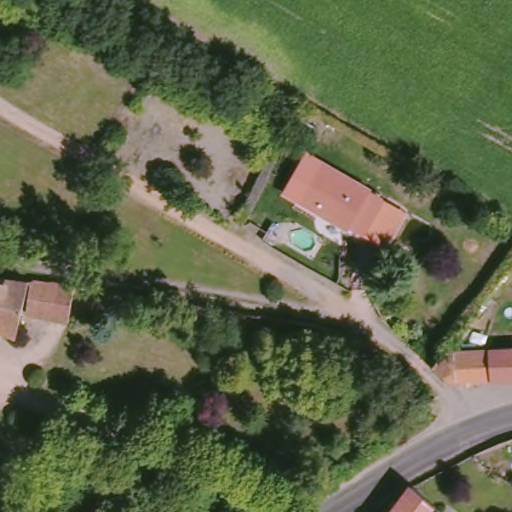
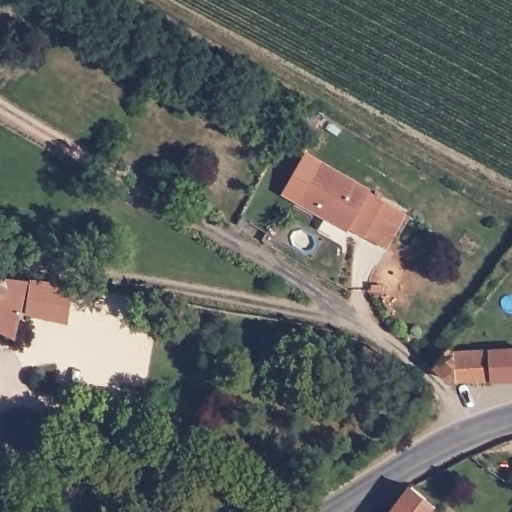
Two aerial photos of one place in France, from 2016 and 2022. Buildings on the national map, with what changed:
unchanged [(368,191),(318,162),(322,157),(374,185),(384,197),(407,211),(389,246),(349,225),(368,191)]
unchanged [(318,162),(368,191),(347,228),(297,199),(318,162)]
unchanged [(17,337),(0,330),(0,278),(22,281),(19,316),(17,337)]
unchanged [(68,323),(25,317),(28,282),(72,288),(68,323)]
unchanged [(462,378),(455,376),(442,365),(455,347),(512,344),(512,375),(462,378)]
unchanged [(411,487),(437,508),(434,512),(392,512),(411,487)]

